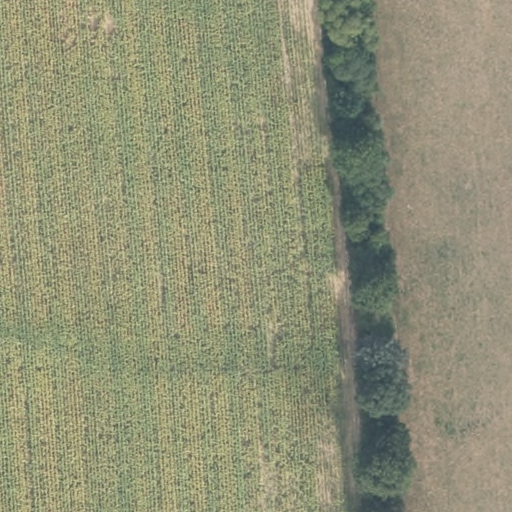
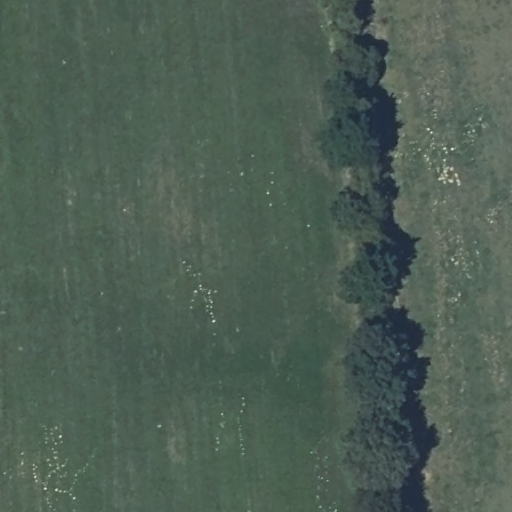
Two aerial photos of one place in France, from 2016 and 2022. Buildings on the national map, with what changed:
[]

